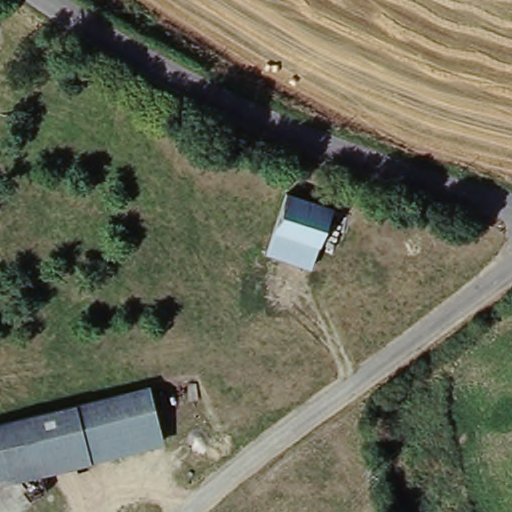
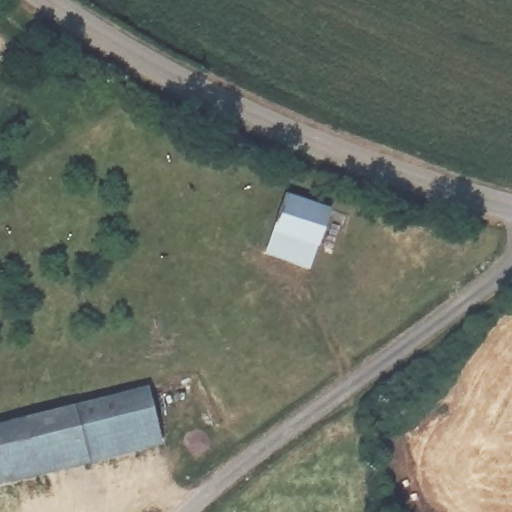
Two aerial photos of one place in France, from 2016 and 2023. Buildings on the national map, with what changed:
unchanged [(328,219),(307,275),(261,259),(281,203),(328,219)]
unchanged [(159,441),(40,471),(27,418),(39,415),(145,387),(159,441)]
unchanged [(27,418),(40,471),(22,476),(0,482),(0,426),(27,418)]

